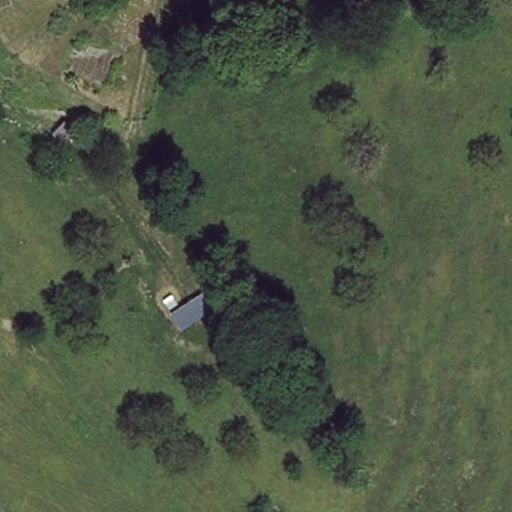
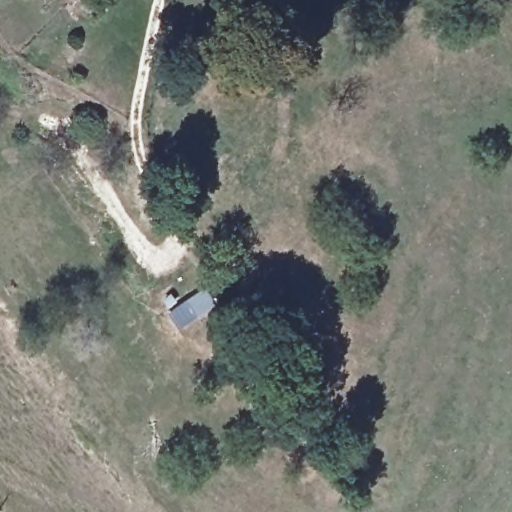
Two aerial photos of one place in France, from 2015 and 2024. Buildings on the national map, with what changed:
unchanged [(215,305),(195,316),(176,284),(196,272),(215,305)]

